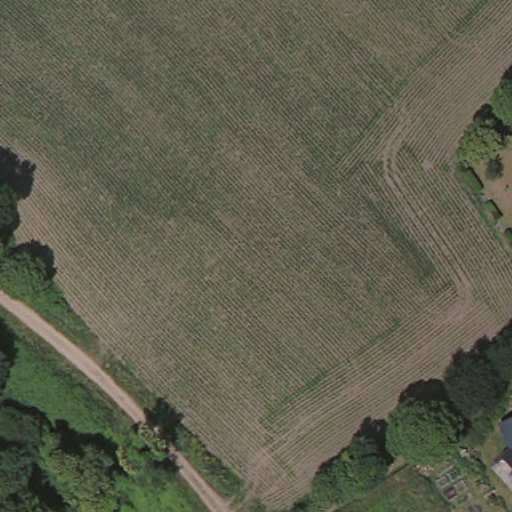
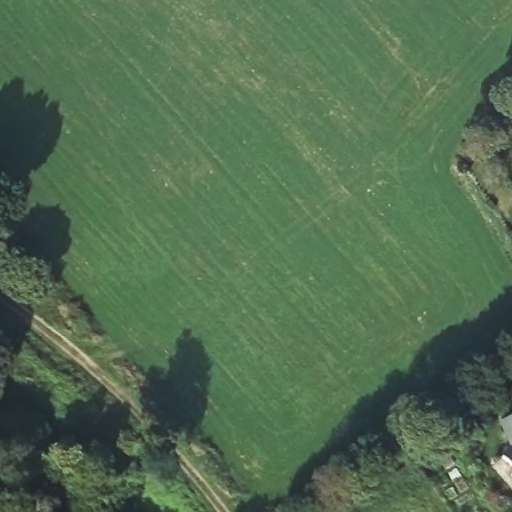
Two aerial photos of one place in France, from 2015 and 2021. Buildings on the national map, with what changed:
unchanged [(512,417),(512,437),(504,421),(512,417)]
unchanged [(512,454),(512,465),(506,459),(512,454)]

